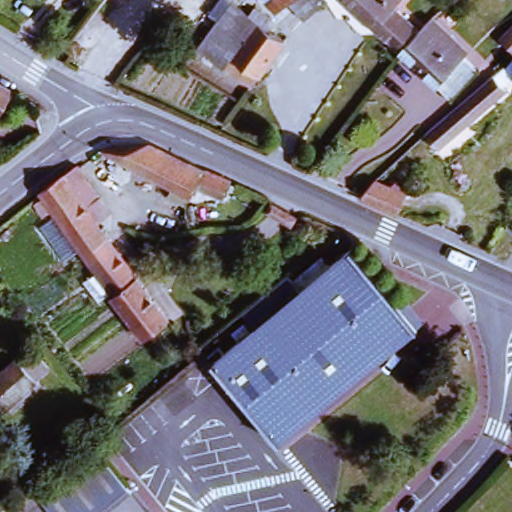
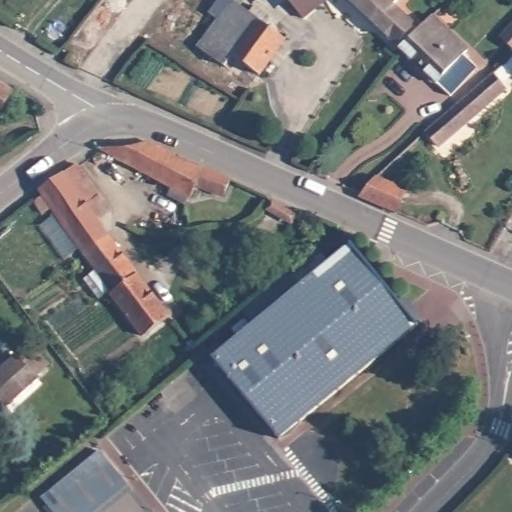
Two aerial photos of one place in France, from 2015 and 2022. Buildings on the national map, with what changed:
unchanged [(282,1),(282,0),(284,0),(282,1)]
unchanged [(284,0),(321,0),(322,1),(298,20),(282,1),(284,0)]
unchanged [(388,7),(408,27),(390,45),(343,0),(396,0),(388,7)]
unchanged [(247,87),(195,50),(228,2),(245,14),(251,7),(269,20),(263,28),(280,40),(247,87)]
unchanged [(413,31),(427,17),(463,52),(458,56),(471,68),(445,97),(394,49),(413,31)]
unchanged [(512,35),(505,27),(512,20),(512,35)]
unchanged [(493,75),(505,90),(438,146),(424,133),(493,75)]
unchanged [(0,111),(0,80),(13,87),(0,111)]
unchanged [(105,149),(145,142),(204,170),(218,174),(229,179),(221,196),(197,185),(191,196),(186,206),(167,196),(173,186),(105,149)]
unchanged [(43,197),(42,195),(40,192),(64,174),(78,164),(111,211),(98,221),(109,235),(85,253),(52,209),(46,214),(36,202),(43,197)]
unchanged [(406,186),(396,208),(359,193),(361,189),(375,173),(406,186)]
unchanged [(168,315),(143,334),(113,295),(114,291),(85,253),(109,235),(168,315)]
unchanged [(214,360),(240,338),(232,329),(243,320),(250,329),(300,289),(292,279),(321,255),(329,265),(350,248),(396,304),(402,298),(421,322),(415,327),(279,439),(214,360)]
unchanged [(36,376),(36,378),(5,406),(0,401),(0,371),(18,355),(20,359),(33,347),(48,364),(36,376)]
unchanged [(98,451),(127,485),(95,512),(52,512),(40,498),(98,451)]

